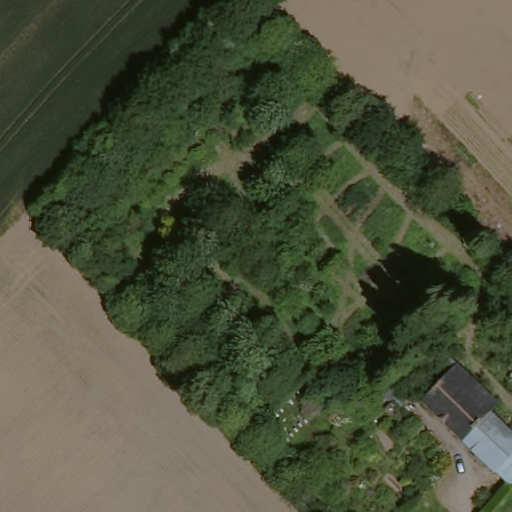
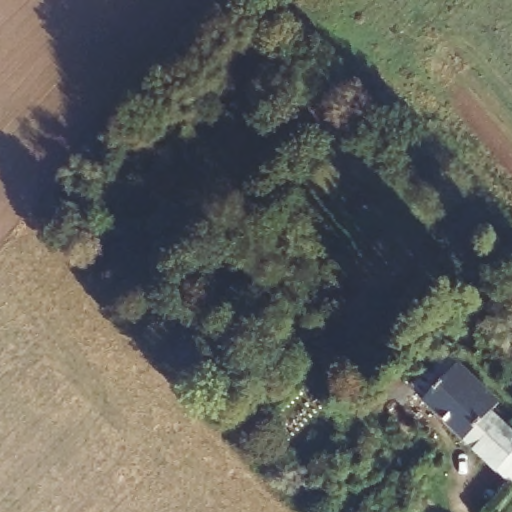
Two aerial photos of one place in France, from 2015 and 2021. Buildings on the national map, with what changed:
unchanged [(436,382),(469,350),(479,359),(446,392),(436,382)]
unchanged [(403,379),(414,368),(432,386),(421,398),(403,379)]
unchanged [(441,408),(473,380),(477,385),(512,423),(512,426),(508,430),(512,435),(512,490),(498,474),(441,408)]

